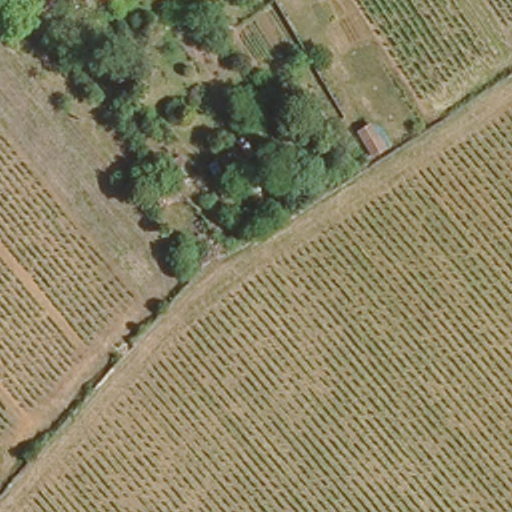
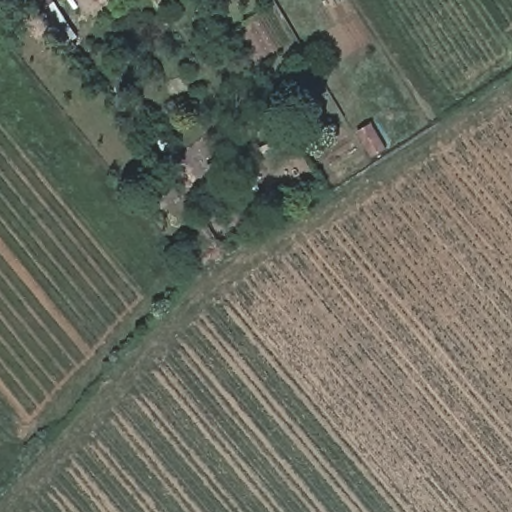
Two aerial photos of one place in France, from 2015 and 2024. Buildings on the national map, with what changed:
unchanged [(52,35),(41,44),(25,26),(37,16),(52,35)]
unchanged [(371,156),(355,127),(372,116),(387,146),(371,156)]
unchanged [(149,185),(168,174),(181,194),(165,206),(149,185)]

